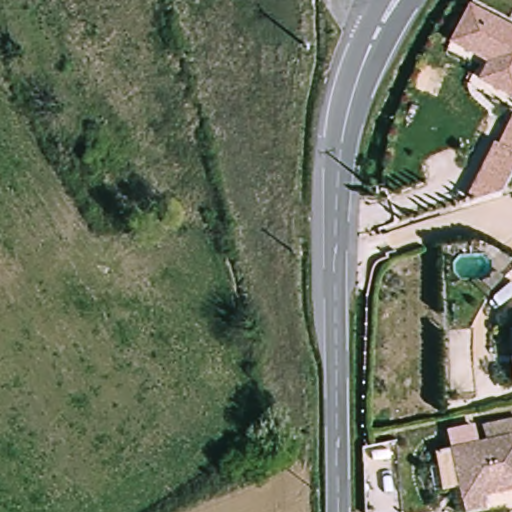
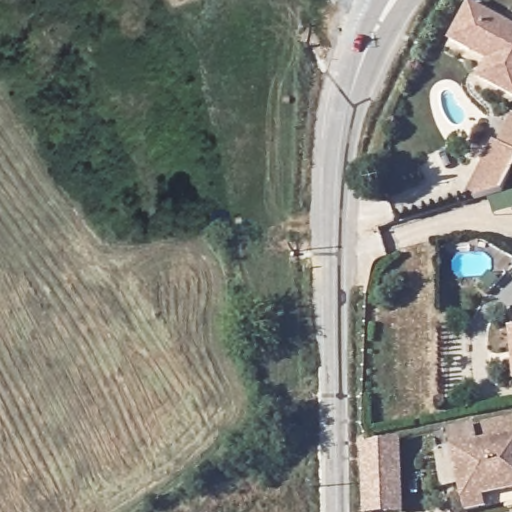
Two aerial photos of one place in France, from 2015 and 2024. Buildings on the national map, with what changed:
unchanged [(492,59),(474,50),(454,40),(474,2),(512,23),(512,94),(491,83),(482,78),(492,59)]
unchanged [(504,192),(466,201),(495,142),(499,145),(512,117),(512,176),(504,192)]
unchanged [(489,494),(492,505),(471,510),(465,485),(441,490),(436,465),(445,463),(442,450),(457,446),(494,438),(490,423),(512,418),(512,489),(489,494)]
new [(392,434),(396,508),(359,510),(355,441),(392,434)]

